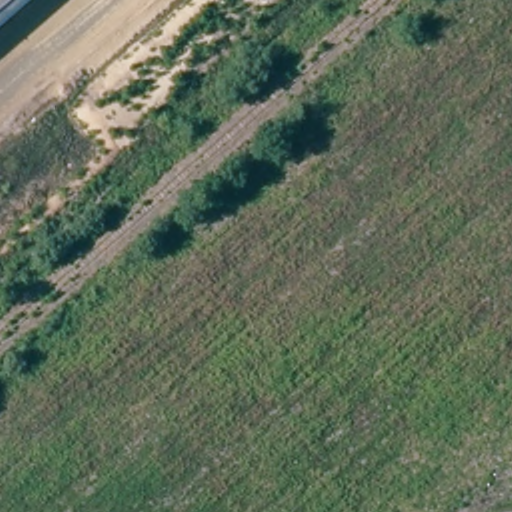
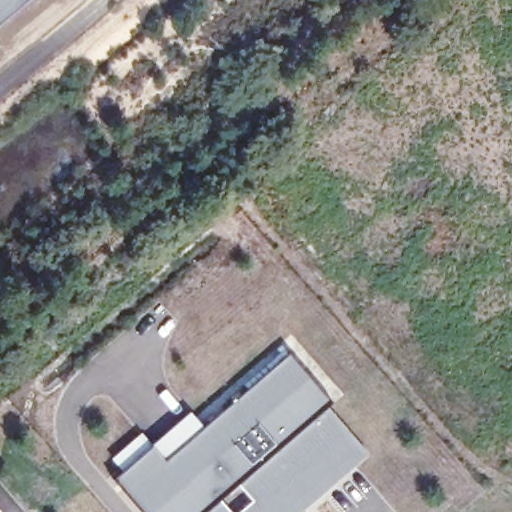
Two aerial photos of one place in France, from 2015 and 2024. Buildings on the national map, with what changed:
unchanged [(0,26),(0,0),(30,0),(0,26)]
new [(328,406),(369,452),(300,512),(142,512),(114,479),(124,471),(113,459),(143,432),(154,444),(191,411),(205,427),(289,354),(333,402),(328,406)]

